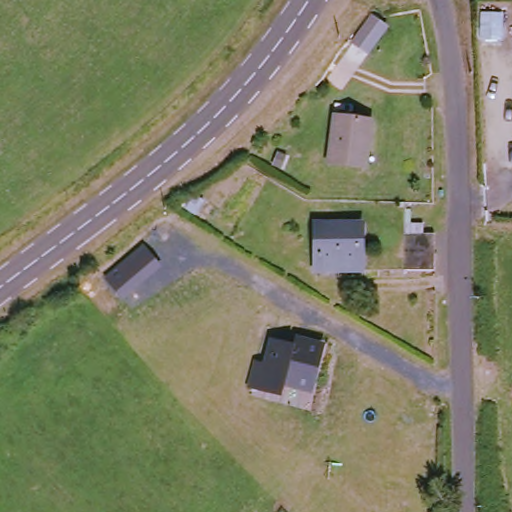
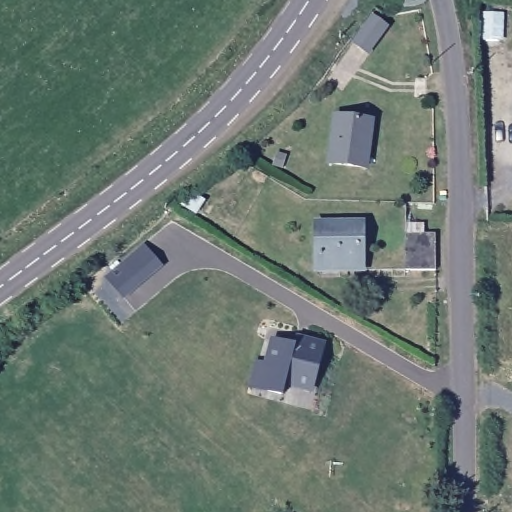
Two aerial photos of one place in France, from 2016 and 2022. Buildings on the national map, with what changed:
unchanged [(382,7),(395,19),(371,45),(358,34),(382,7)]
unchanged [(492,13),(491,38),(473,37),(475,13),(492,13)]
unchanged [(371,128),(367,172),(331,168),(335,124),(371,128)]
unchanged [(360,222),(360,268),(318,268),(317,221),(360,222)]
unchanged [(408,231),(438,231),(438,266),(409,267),(408,231)]
unchanged [(122,299),(104,279),(143,245),(161,267),(122,299)]
unchanged [(263,360),(269,360),(273,360),(275,334),(305,337),(303,351),(323,353),(319,400),(293,397),(294,386),(266,383),(261,383),(263,360)]

